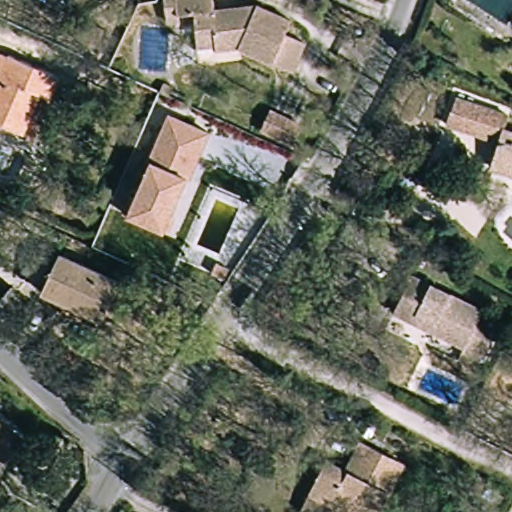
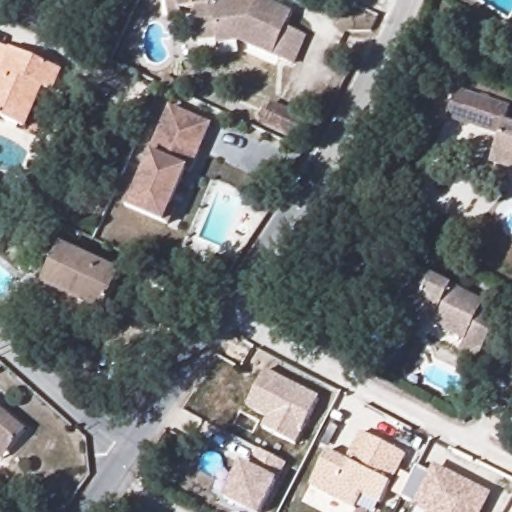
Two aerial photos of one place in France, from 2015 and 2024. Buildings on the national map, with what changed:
unchanged [(216,40),(198,41),(195,8),(181,10),(182,16),(168,18),(166,0),(216,0),(217,5),(258,0),(293,15),(287,28),(306,36),(293,66),(240,41),(217,44),(216,40)]
unchanged [(63,93),(53,89),(35,129),(0,113),(0,43),(18,51),(20,50),(72,72),(63,93)]
unchanged [(494,151),(499,135),(447,118),(456,91),(510,109),(505,123),(512,125),(512,169),(490,161),(494,151)]
unchanged [(305,119),(295,139),(262,124),(271,104),(305,119)]
unchanged [(193,173),(190,171),(170,228),(126,207),(170,105),(211,123),(193,173)]
unchanged [(105,314),(43,286),(61,247),(122,275),(105,314)]
unchanged [(482,359),(465,350),(470,340),(400,305),(418,268),(489,304),(482,317),(500,325),(482,359)]
new [(269,419),(247,407),(266,372),(319,400),(295,444),(263,428),(269,419)]
unchanged [(26,427),(11,445),(0,436),(0,406),(26,427)]
unchanged [(327,452),(347,462),(361,434),(405,456),(380,505),(362,495),(354,512),(321,512),(301,502),(327,452)]
unchanged [(3,455),(0,452),(0,436),(11,445),(3,455)]
new [(287,466),(279,481),(263,512),(245,512),(222,501),(241,462),(247,465),(258,450),(287,466)]
new [(431,473),(435,466),(492,495),(483,512),(424,512),(412,506),(414,504),(400,498),(417,466),(431,473)]
demolished [(492,496),(471,486),(480,468),(500,478),(492,496)]

